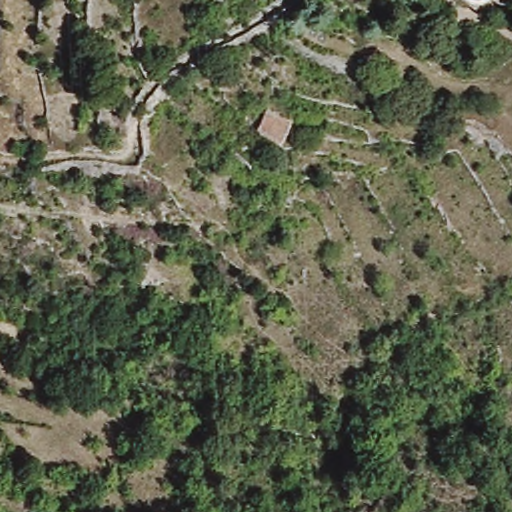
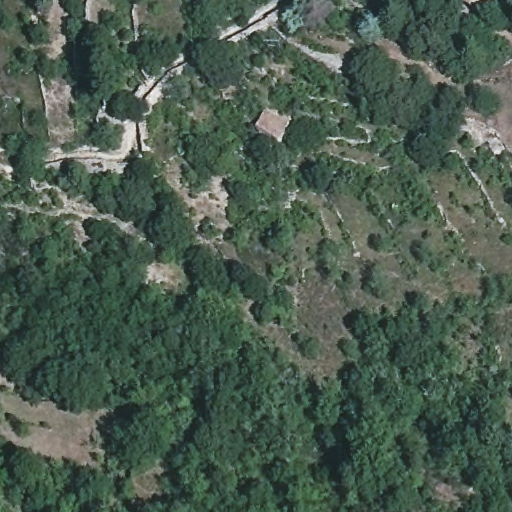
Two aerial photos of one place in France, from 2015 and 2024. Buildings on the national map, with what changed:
unchanged [(280,139),(255,129),(263,107),(287,114),(280,139)]

